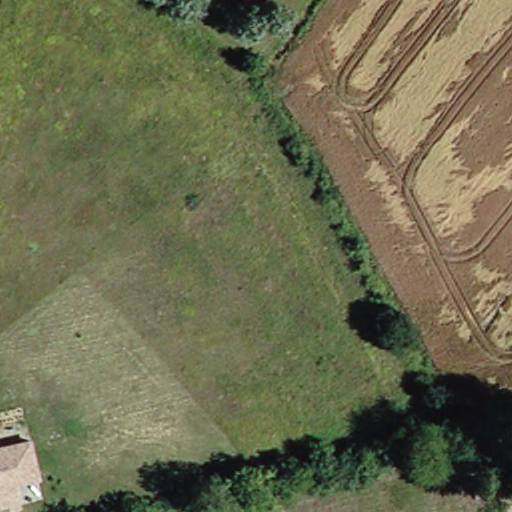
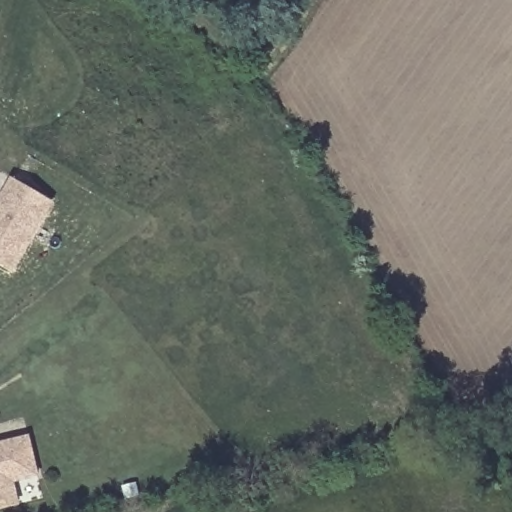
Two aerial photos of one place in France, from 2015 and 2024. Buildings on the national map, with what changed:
new [(0,263),(0,205),(14,181),(39,196),(52,204),(44,217),(13,270),(0,263)]
unchanged [(4,509),(1,500),(0,501),(0,444),(27,436),(39,473),(14,480),(21,502),(4,509)]
unchanged [(154,512),(145,512),(153,510),(154,512)]

